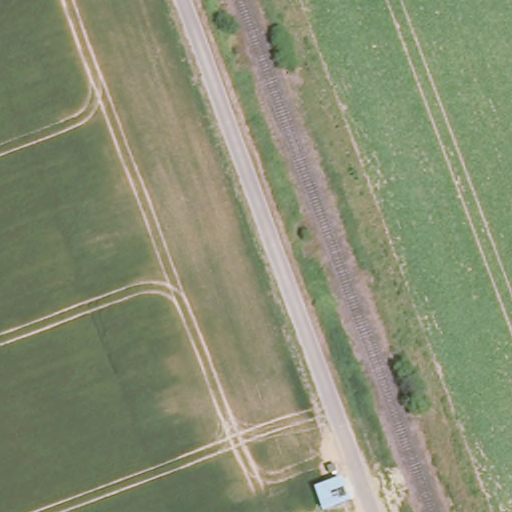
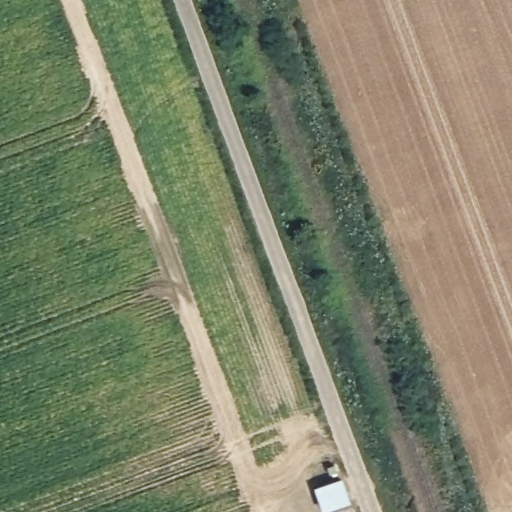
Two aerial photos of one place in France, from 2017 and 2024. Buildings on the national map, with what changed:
unchanged [(342,481),(353,504),(336,512),(326,512),(317,492),(342,481)]

